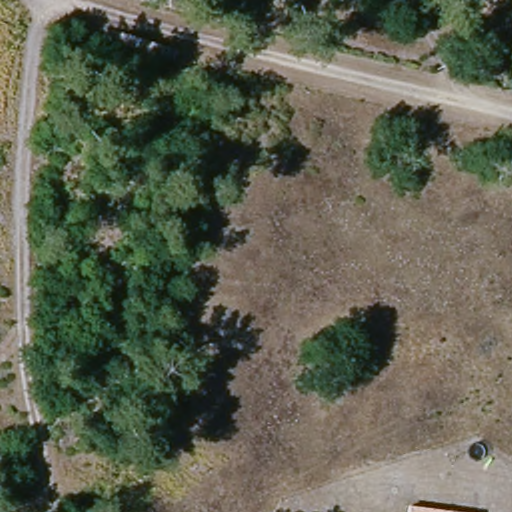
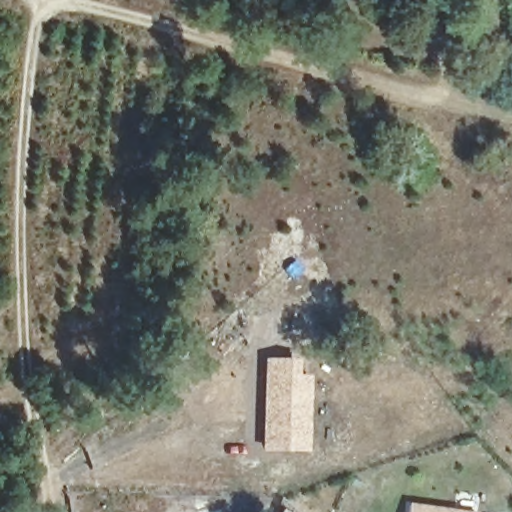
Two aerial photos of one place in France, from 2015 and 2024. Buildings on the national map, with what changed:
new [(264,358),(301,360),(300,375),(313,376),(308,454),(260,452),(264,358)]
unchanged [(463,512),(407,512),(408,505),(463,512)]

